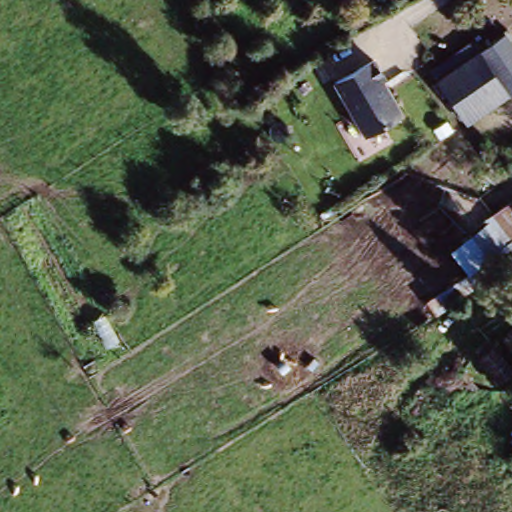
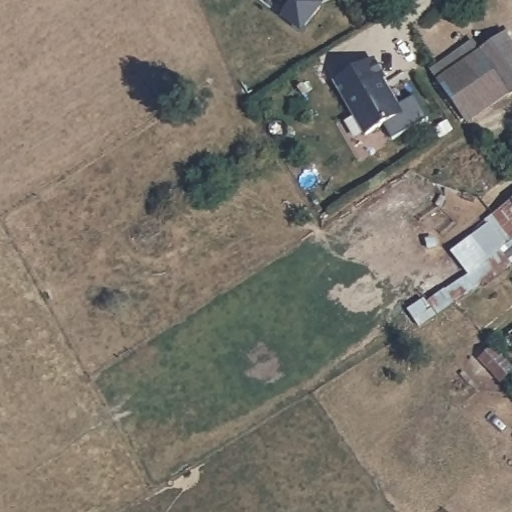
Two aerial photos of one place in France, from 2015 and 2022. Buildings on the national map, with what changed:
new [(302,31),(282,18),(286,8),(276,0),(321,0),(324,3),(302,31)]
unchanged [(491,37),(497,47),(512,36),(512,99),(472,126),(437,74),(491,37)]
unchanged [(387,78),(385,80),(406,114),(369,136),(336,84),(376,60),(387,78)]
unchanged [(509,225),(498,210),(512,199),(512,223),(509,225)]
unchanged [(509,242),(489,216),(498,210),(509,225),(512,223),(512,239),(509,242)]
unchanged [(499,360),(482,344),(512,323),(512,351),(499,360)]
unchanged [(504,431),(512,425),(512,438),(504,431)]

